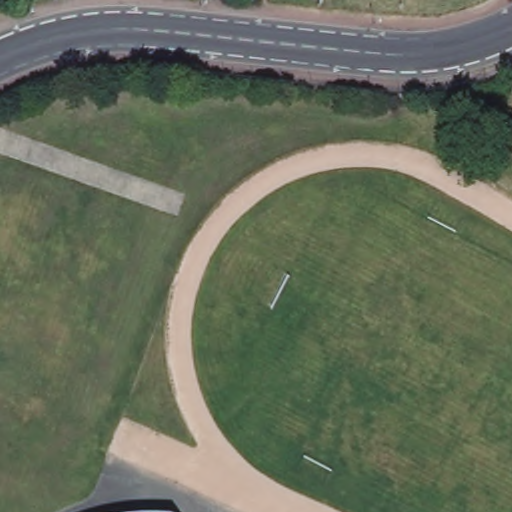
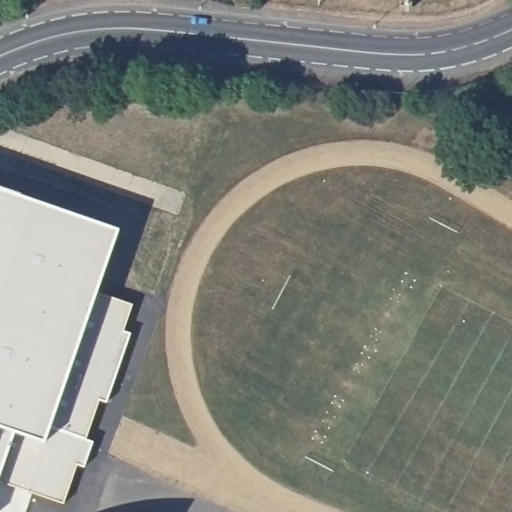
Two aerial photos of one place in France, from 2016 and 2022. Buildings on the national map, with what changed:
new [(97,291),(132,303),(123,329),(130,332),(106,401),(99,399),(85,438),(92,440),(84,466),(76,463),(62,503),(24,490),(27,481),(0,472),(0,186),(120,227),(97,291)]
new [(24,490),(0,481),(0,472),(27,481),(24,490)]

